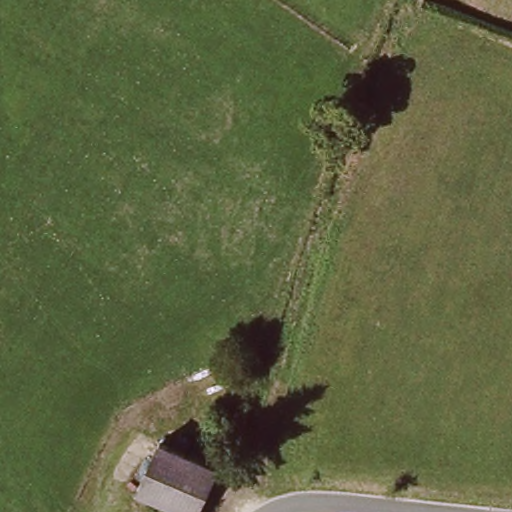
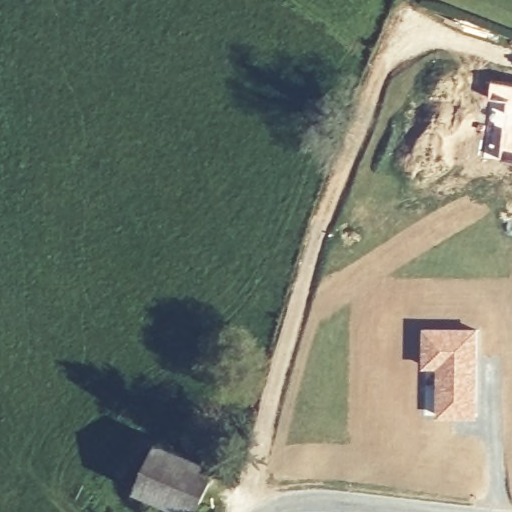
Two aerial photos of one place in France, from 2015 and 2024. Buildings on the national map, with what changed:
new [(490,80),(512,82),(512,160),(478,155),(490,80)]
new [(422,326),(480,327),(477,418),(437,416),(436,369),(422,368),(422,326)]
unchanged [(138,489),(155,440),(218,463),(200,511),(138,489)]

